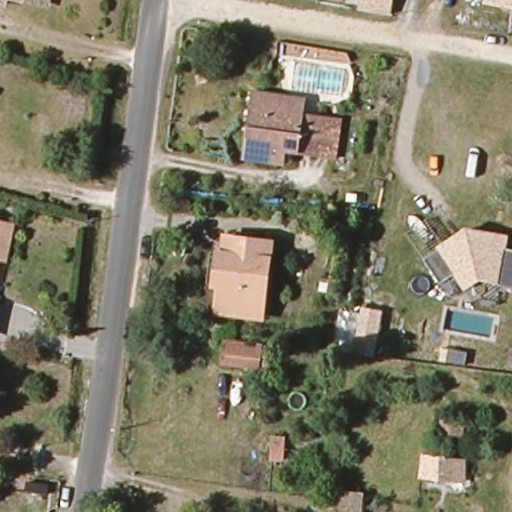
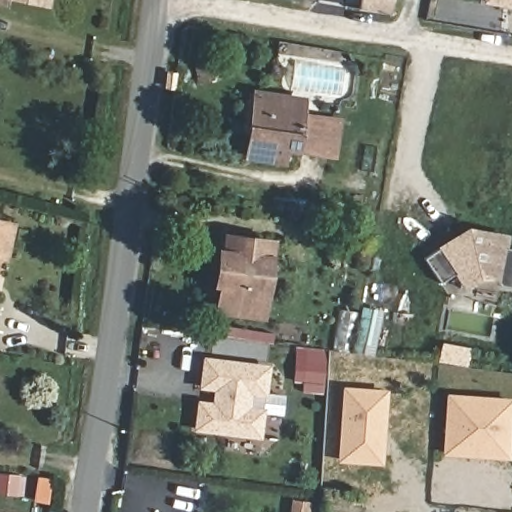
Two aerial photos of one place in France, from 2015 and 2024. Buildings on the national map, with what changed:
unchanged [(0,10),(0,0),(9,0),(6,12),(0,10)]
unchanged [(40,5),(19,0),(46,0),(45,6),(40,5)]
unchanged [(369,12),(371,0),(404,0),(400,17),(369,12)]
unchanged [(483,0),(512,0),(512,9),(482,4),(483,0)]
new [(232,58),(236,75),(196,82),(193,65),(232,58)]
unchanged [(330,160),(317,159),(281,154),(278,171),(251,167),(254,141),(247,139),(252,101),(287,105),(298,106),(297,117),(321,121),(334,124),(330,160)]
unchanged [(477,281),(463,290),(450,299),(406,232),(425,217),(441,241),(463,226),(507,235),(505,250),(512,251),(512,286),(498,284),(477,281)]
unchanged [(15,224),(8,261),(1,260),(0,264),(0,221),(15,224)]
unchanged [(257,321),(217,313),(220,282),(212,281),(216,250),(225,251),(226,240),(239,242),(268,247),(257,321)]
unchanged [(373,357),(351,353),(359,306),(381,309),(373,357)]
demolished [(275,371),(218,365),(222,337),(276,344),(275,371)]
new [(435,362),(438,342),(470,348),(466,367),(435,362)]
new [(320,393),(300,392),(303,347),(324,349),(320,393)]
new [(211,390),(197,388),(201,357),(269,365),(265,397),(251,395),(249,407),(264,408),(259,439),(192,431),(196,400),(211,402),(211,390)]
new [(336,462),(341,386),(387,390),(382,465),(336,462)]
new [(440,456),(445,393),(512,398),(512,406),(508,460),(440,456)]
unchanged [(456,462),(453,480),(430,475),(432,458),(456,462)]
unchanged [(365,512),(324,512),(324,493),(324,490),(365,494),(365,512)]

